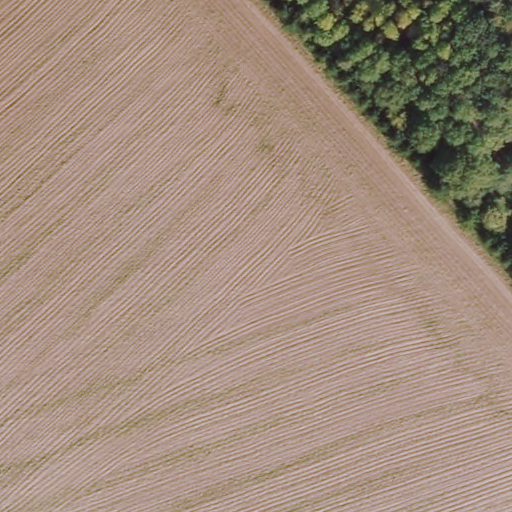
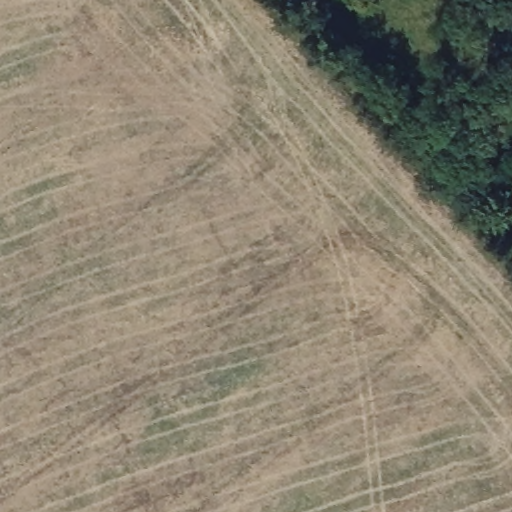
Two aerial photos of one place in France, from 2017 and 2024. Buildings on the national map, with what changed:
unchanged [(512,99),(512,108),(507,103),(512,99)]
unchanged [(512,130),(512,140),(509,143),(493,126),(501,119),(512,130)]

